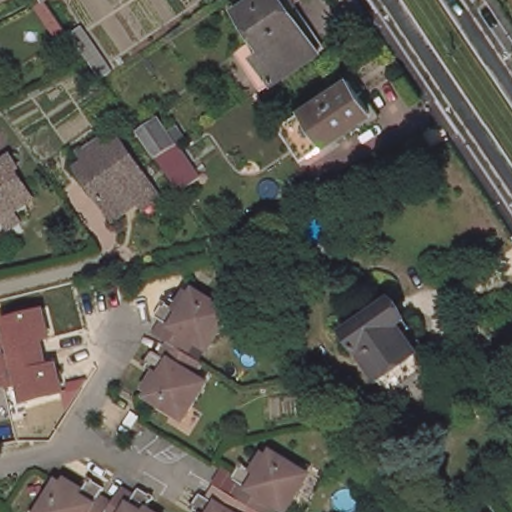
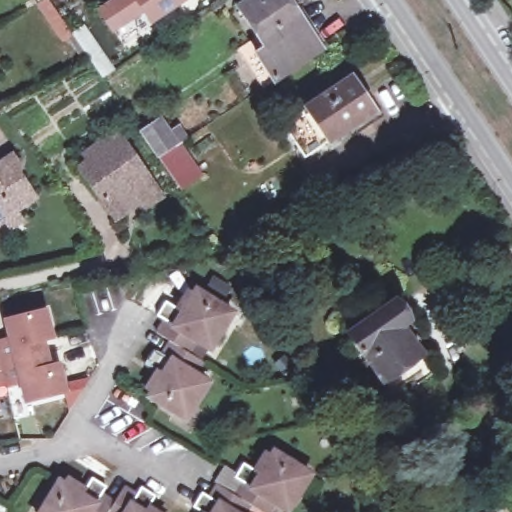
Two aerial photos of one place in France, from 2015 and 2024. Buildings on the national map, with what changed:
new [(142,14),(124,26),(108,0),(187,0),(149,25),(142,14)]
unchanged [(289,0),(297,0),(302,8),(297,11),(324,50),(286,76),(281,68),(268,49),(243,9),(256,0),(289,0)]
unchanged [(76,39),(73,34),(83,26),(88,33),(93,40),(116,73),(105,80),(91,60),(83,47),(76,39)]
unchanged [(254,97),(236,72),(254,60),(271,86),(254,97)]
unchanged [(286,126),(296,118),(351,80),(374,114),(319,152),(309,159),(286,126)]
unchanged [(161,159),(145,137),(175,117),(190,140),(178,148),(186,158),(191,164),(199,177),(182,190),(173,176),(161,159)]
unchanged [(156,187),(115,216),(83,170),(96,159),(91,152),(117,133),(156,187)]
unchanged [(0,230),(0,177),(14,168),(38,205),(0,230)]
unchanged [(238,315),(213,354),(199,346),(193,357),(174,345),(159,336),(168,324),(159,318),(169,304),(182,312),(194,294),(200,297),(203,293),(238,315)]
unchanged [(393,393),(380,375),(379,376),(344,328),(394,295),(408,316),(403,320),(419,345),(418,346),(432,366),(393,393)]
unchanged [(51,335),(43,338),(50,365),(59,364),(63,391),(11,405),(6,385),(0,388),(0,342),(9,340),(7,321),(45,313),(51,335)]
unchanged [(161,374),(148,366),(158,352),(166,357),(174,345),(193,357),(206,366),(199,378),(212,386),(189,422),(153,399),(156,394),(150,391),(161,374)]
unchanged [(255,481),(248,476),(256,461),(266,468),(279,450),(284,454),(287,449),(323,473),(299,509),(286,501),(278,512),(276,512),(262,503),(246,493),(255,481)]
unchanged [(62,484),(66,486),(70,480),(88,492),(94,480),(109,490),(105,496),(116,504),(111,512),(43,512),(62,484)]
unchanged [(216,511),(206,504),(215,490),(222,495),(229,482),(246,493),(262,503),(256,512),(216,512),(216,511)]
unchanged [(116,504),(126,490),(139,498),(144,490),(158,500),(151,510),(154,512),(111,512),(116,504)]

